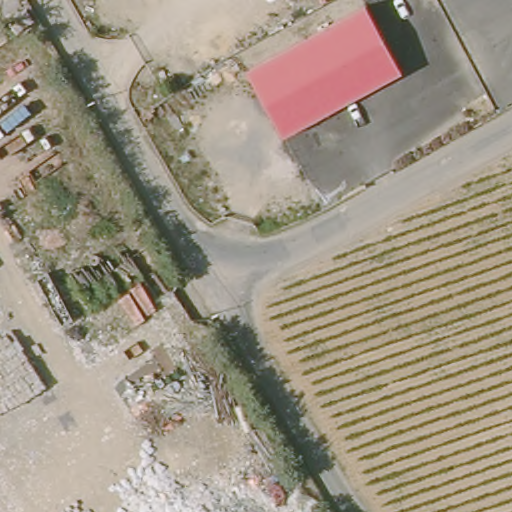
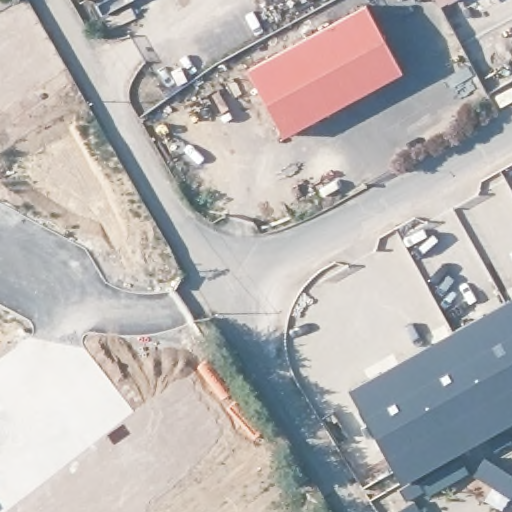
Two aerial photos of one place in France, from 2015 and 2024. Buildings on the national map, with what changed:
unchanged [(404,66),(284,135),(245,72),(369,2),(404,66)]
new [(440,337),(452,330),(505,301),(512,298),(512,424),(455,456),(403,485),(349,389),(440,337)]
new [(484,455),(512,473),(512,495),(502,509),(485,498),(492,486),(473,473),(484,455)]
new [(460,459),(468,472),(427,495),(425,491),(413,499),(403,485),(455,456),(457,461),(460,459)]
new [(397,512),(397,511),(413,499),(421,512),(397,512)]

